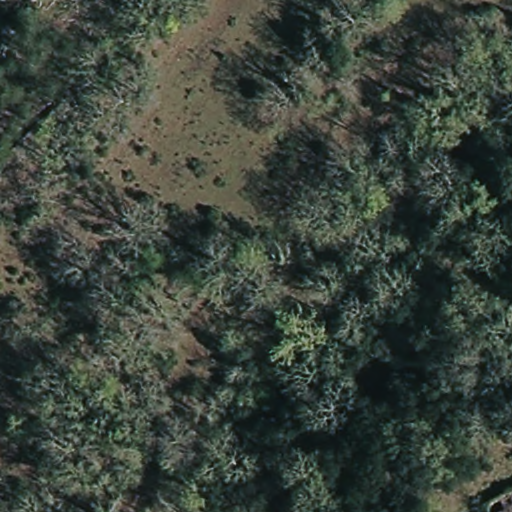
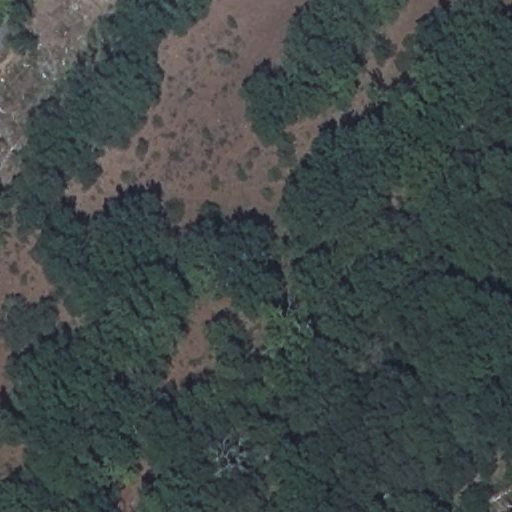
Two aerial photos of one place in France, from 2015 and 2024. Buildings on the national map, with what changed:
unchanged [(512,490),(512,512),(481,512),(478,505),(512,490)]

